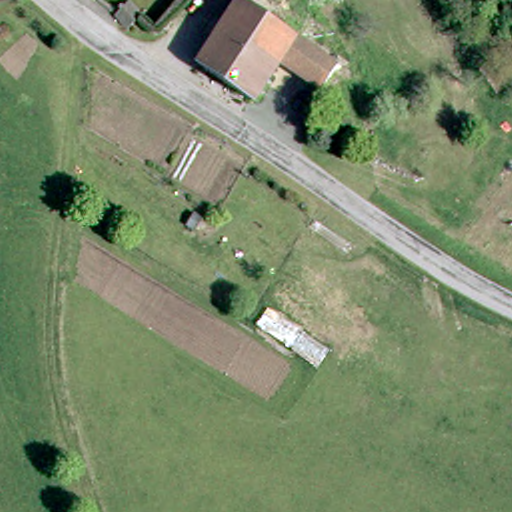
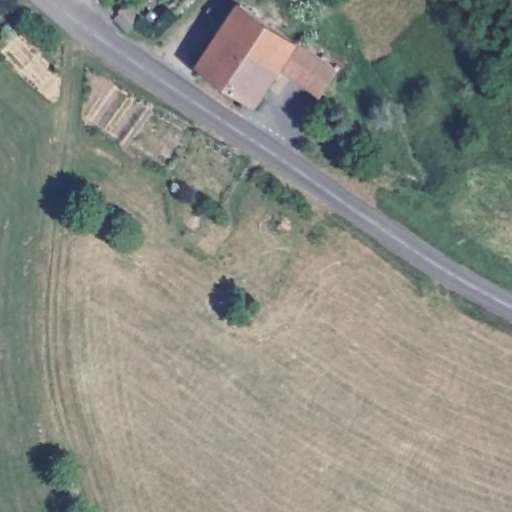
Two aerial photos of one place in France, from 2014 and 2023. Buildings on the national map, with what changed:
unchanged [(128,16),(145,0),(158,0),(133,23),(119,37),(107,19),(121,6),(128,16)]
unchanged [(289,63),(261,104),(203,65),(247,5),(302,44),(289,63)]
unchanged [(289,63),(302,44),(305,40),(340,70),(327,89),(289,63)]

